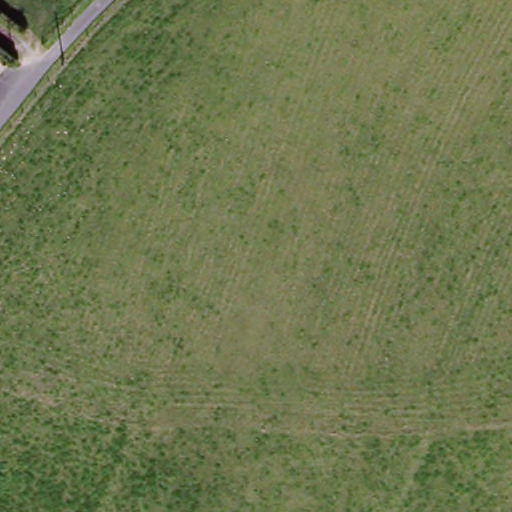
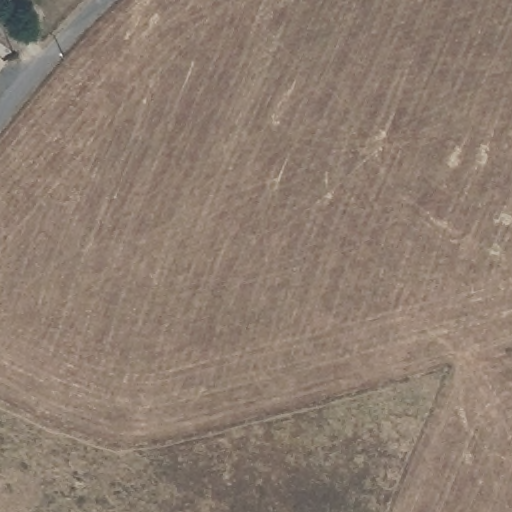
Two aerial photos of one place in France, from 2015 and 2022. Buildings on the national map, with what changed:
[]

